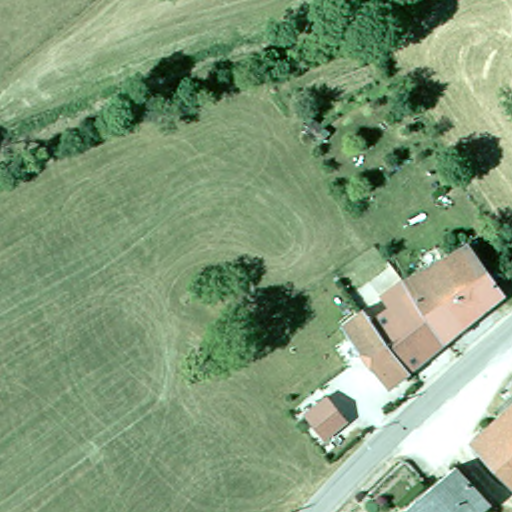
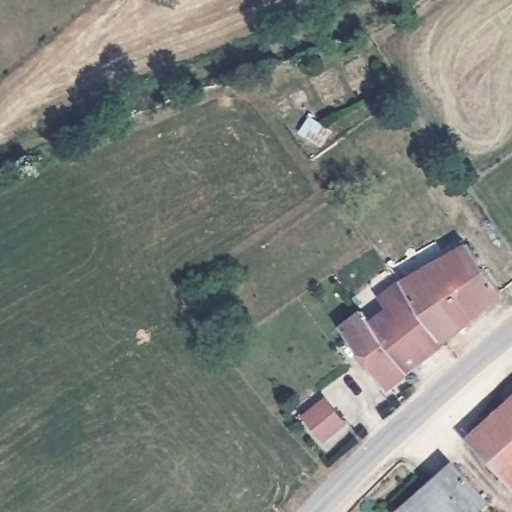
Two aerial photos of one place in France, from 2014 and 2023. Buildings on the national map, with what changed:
unchanged [(404,281),(470,243),(505,295),(445,345),(404,281)]
unchanged [(365,311),(374,322),(391,309),(383,298),(404,281),(445,345),(391,388),(343,327),(365,311)]
unchanged [(322,442),(319,439),(304,419),(327,401),(345,425),(322,442)]
unchanged [(512,408),(512,484),(474,442),(512,408)]
unchanged [(479,510),(477,512),(407,512),(418,502),(416,500),(453,468),(485,504),(479,510)]

